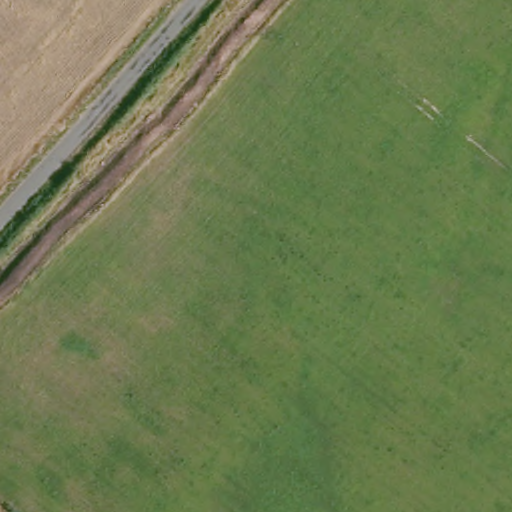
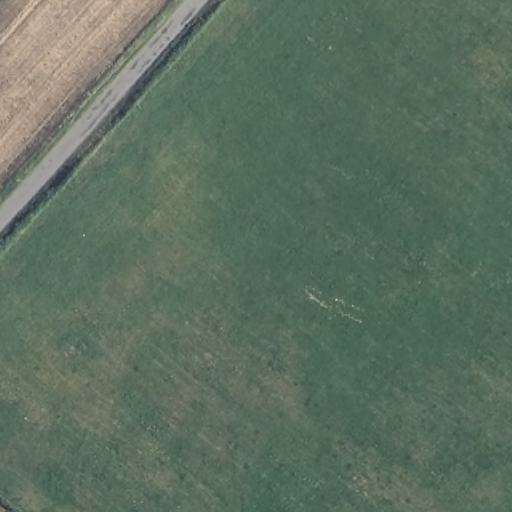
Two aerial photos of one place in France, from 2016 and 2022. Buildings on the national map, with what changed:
[]

